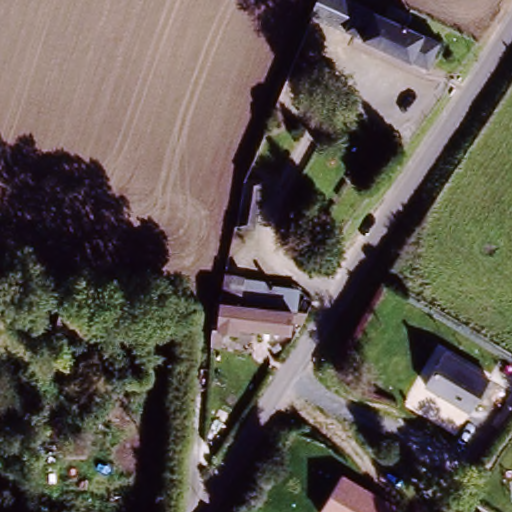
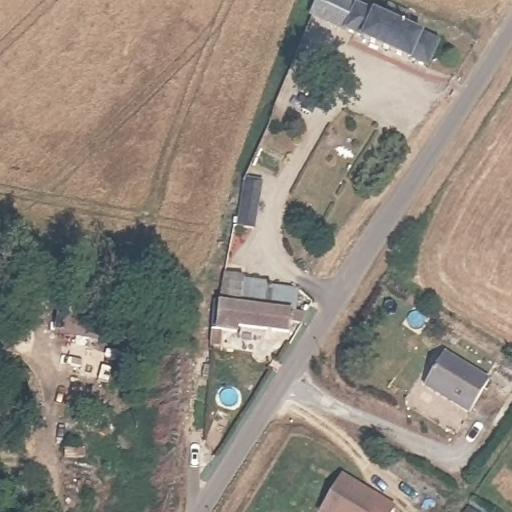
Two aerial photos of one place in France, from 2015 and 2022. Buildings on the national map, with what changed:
unchanged [(366,11),(355,40),(313,23),(313,22),(322,0),(339,0),(366,11)]
unchanged [(383,19),(388,8),(408,16),(402,28),(445,45),(435,73),(355,40),(366,11),(383,19)]
unchanged [(313,115),(301,107),(308,95),(320,102),(313,115)]
unchanged [(254,227),(235,225),(239,183),(258,185),(254,227)]
unchanged [(280,350),(266,347),(268,336),(248,332),(247,337),(221,334),(216,333),(219,304),(218,299),(220,300),(225,300),(229,277),(248,281),(242,304),(277,309),(280,287),(300,289),(297,312),(293,338),(282,336),(280,350)]
unchanged [(141,345),(77,333),(55,330),(61,299),(82,303),(146,315),(141,345)]
unchanged [(466,409),(425,385),(444,355),(484,377),(466,409)]
unchanged [(320,512),(343,474),(370,489),(366,497),(391,512),(320,512)]

